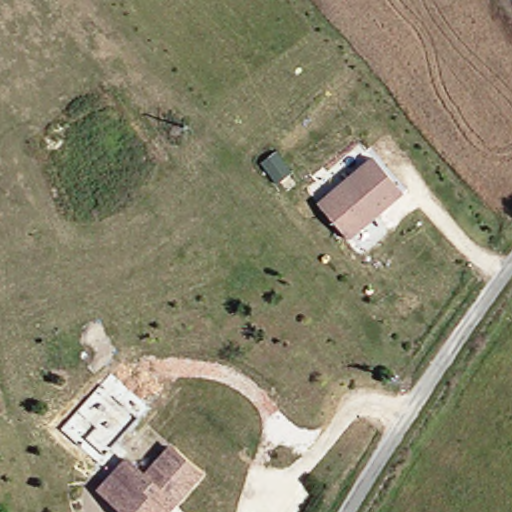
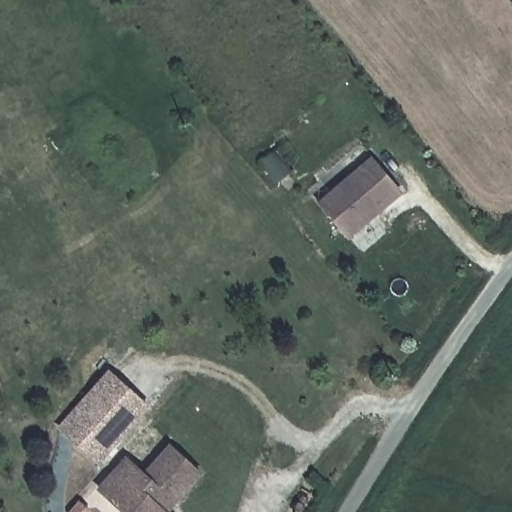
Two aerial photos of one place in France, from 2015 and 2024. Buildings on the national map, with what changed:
unchanged [(367,226),(342,246),(314,211),(368,170),(392,201),(394,204),(367,226)]
new [(153,408),(100,466),(58,429),(109,370),(153,408)]
unchanged [(188,512),(130,512),(106,497),(129,460),(149,473),(169,440),(206,462),(187,494),(179,506),(188,512)]

